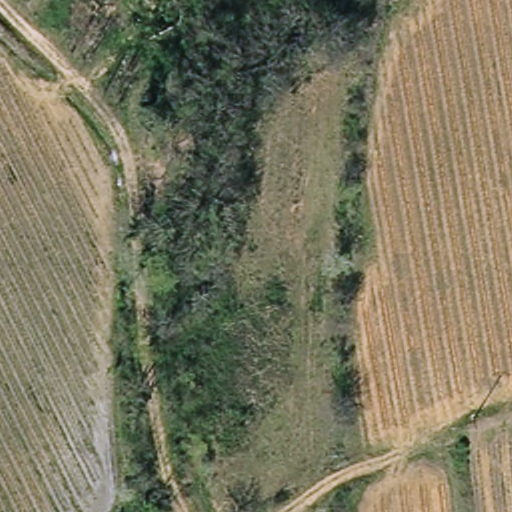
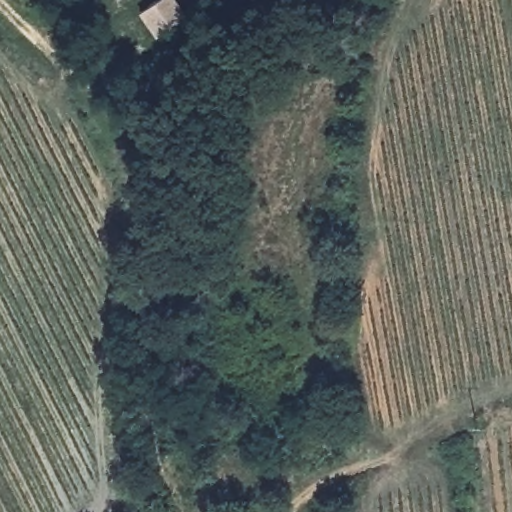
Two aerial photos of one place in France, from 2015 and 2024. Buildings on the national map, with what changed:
new [(155,39),(135,14),(153,0),(173,0),(185,17),(155,39)]

